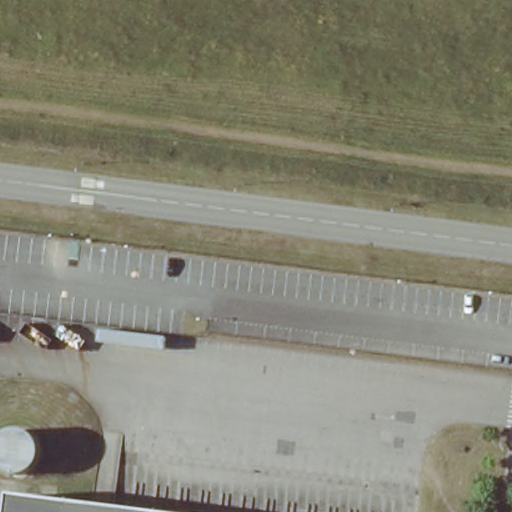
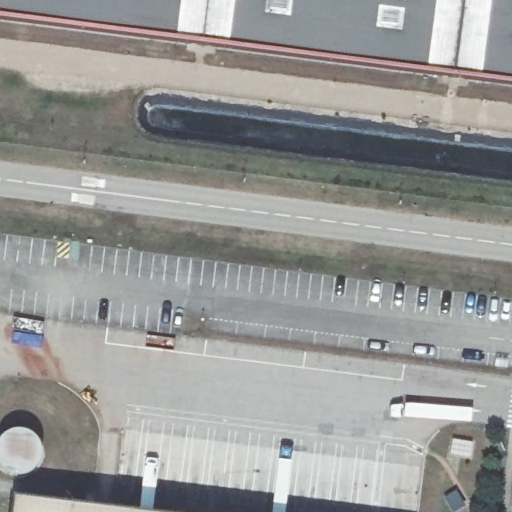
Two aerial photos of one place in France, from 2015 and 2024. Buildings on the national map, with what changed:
new [(512,0),(512,85),(0,18),(0,0),(512,0)]
unchanged [(30,501),(108,512),(28,512),(30,501)]

